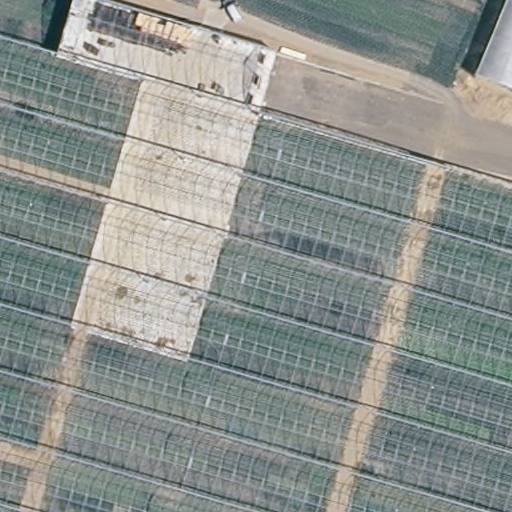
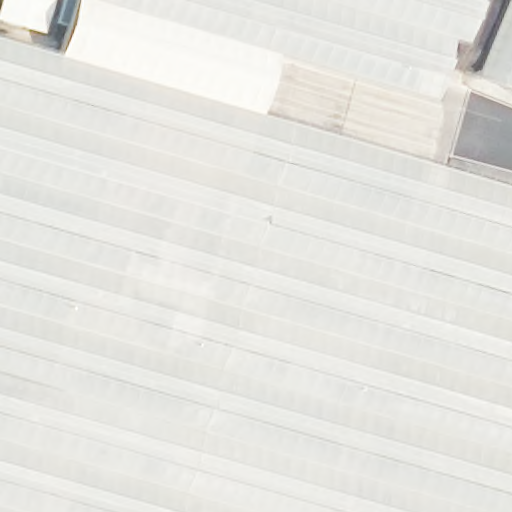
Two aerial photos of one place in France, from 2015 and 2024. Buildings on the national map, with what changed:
new [(0,0),(52,0),(42,33),(0,23),(0,0)]
unchanged [(71,0),(86,0),(274,55),(258,116),(512,189),(512,512),(0,512),(0,40),(57,56),(71,0)]
new [(469,45),(454,41),(437,102),(274,55),(86,0),(482,0),(469,45)]
unchanged [(474,76),(506,0),(512,0),(512,92),(474,76)]

